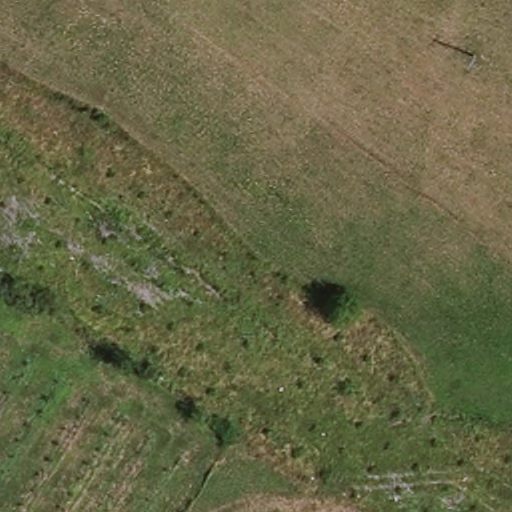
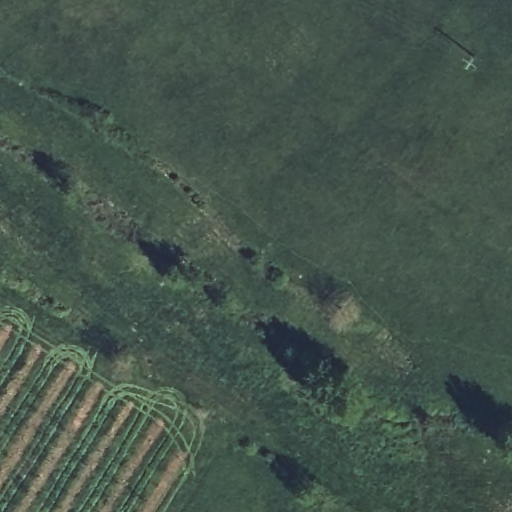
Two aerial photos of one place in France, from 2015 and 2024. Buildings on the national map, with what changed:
[]

